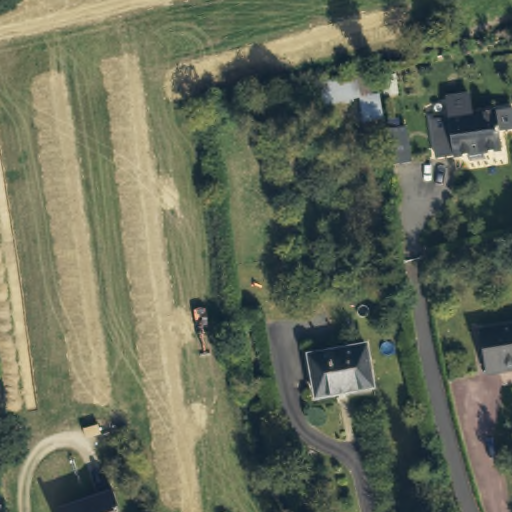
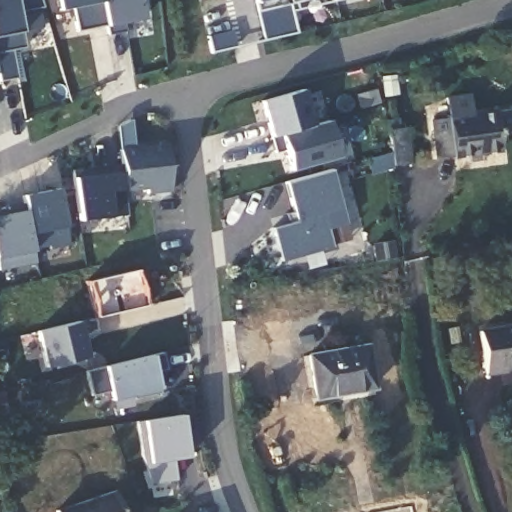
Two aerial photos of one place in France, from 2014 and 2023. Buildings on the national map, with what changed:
new [(21,31),(24,48),(10,50),(16,77),(0,79),(0,0),(40,0),(42,6),(19,10),(21,31)]
new [(126,31),(107,34),(105,25),(76,31),(72,9),(58,11),(56,0),(142,0),(145,19),(125,21),(126,31)]
new [(297,32),(261,40),(254,3),(253,0),(306,0),(290,4),(297,32)]
demolished [(389,146),(365,148),(358,101),(320,106),(315,82),(375,70),(389,146)]
new [(290,172),(280,135),(270,138),(260,101),(303,88),(312,125),(330,121),(339,158),(290,172)]
unchanged [(466,94),(469,114),(511,108),(512,114),(512,128),(496,131),(499,149),(435,159),(430,119),(447,116),(445,96),(466,94)]
new [(121,165),(117,125),(132,121),(135,146),(167,143),(173,193),(147,196),(146,191),(125,192),(128,216),(79,220),(72,171),(121,165)]
new [(328,230),(333,248),(281,263),(270,229),(295,221),(283,183),(330,170),(346,224),(328,230)]
new [(22,196),(57,190),(65,226),(69,244),(33,251),(35,265),(0,272),(0,214),(25,210),(22,196)]
new [(45,367),(38,331),(80,322),(87,358),(45,367)]
unchanged [(487,375),(478,333),(512,326),(512,369),(501,372),(487,375)]
unchanged [(320,396),(311,355),(368,345),(375,386),(320,396)]
new [(103,368),(152,357),(162,354),(165,369),(160,370),(164,392),(131,400),(132,409),(114,413),(112,402),(109,392),(92,394),(86,370),(103,368)]
new [(189,457),(175,459),(178,483),(151,487),(141,457),(136,421),(142,420),(181,414),(189,457)]
unchanged [(115,494),(120,512),(58,512),(115,494)]

